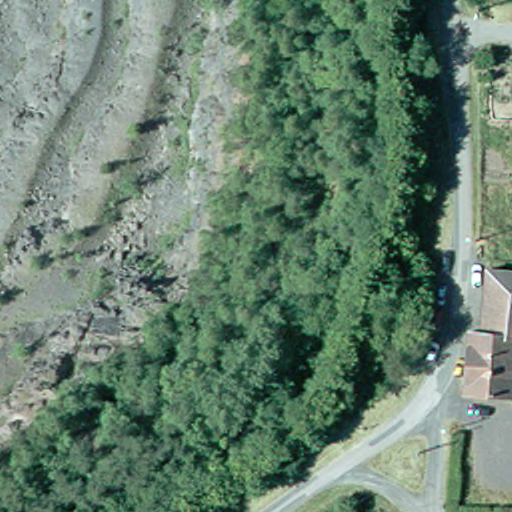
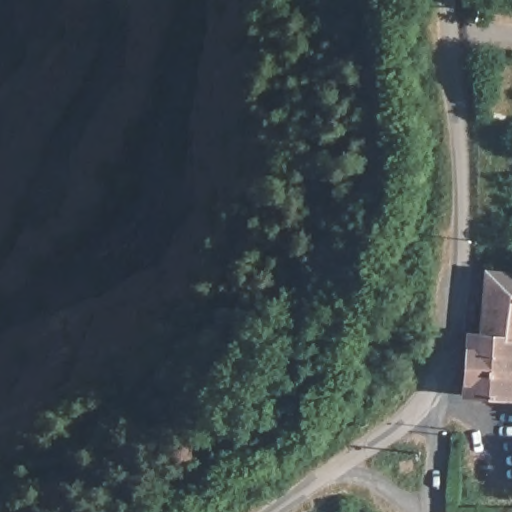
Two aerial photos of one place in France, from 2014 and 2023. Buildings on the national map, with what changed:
unchanged [(484,338),(489,275),(512,278),(512,340),(484,338)]
unchanged [(512,401),(468,398),(472,352),(483,353),(484,338),(512,340),(512,393),(512,401)]
unchanged [(405,471),(403,461),(405,460),(416,457),(418,468),(405,471)]

